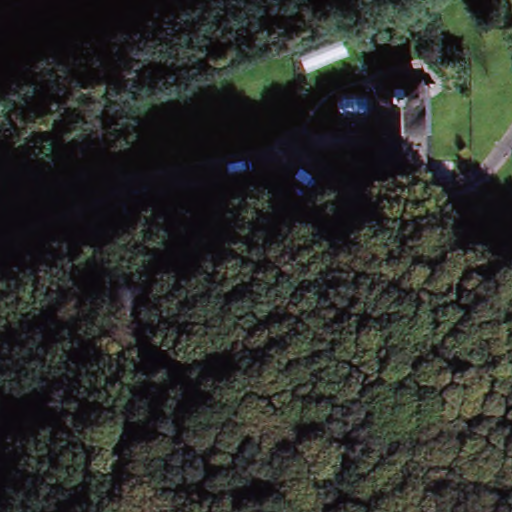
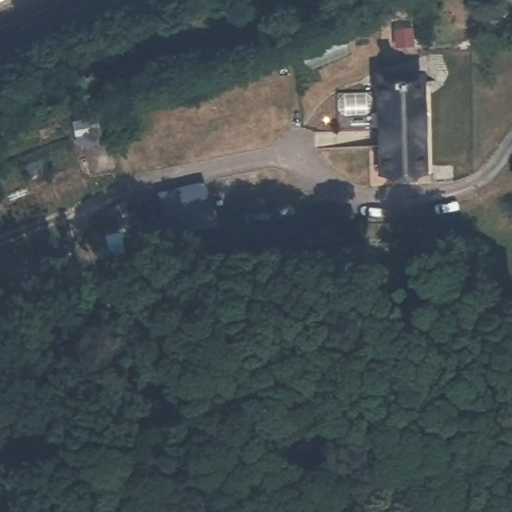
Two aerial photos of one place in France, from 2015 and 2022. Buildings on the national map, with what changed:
unchanged [(399,43),(394,0),(422,0),(423,41),(399,43)]
unchanged [(428,70),(428,176),(378,179),(374,75),(428,70)]

